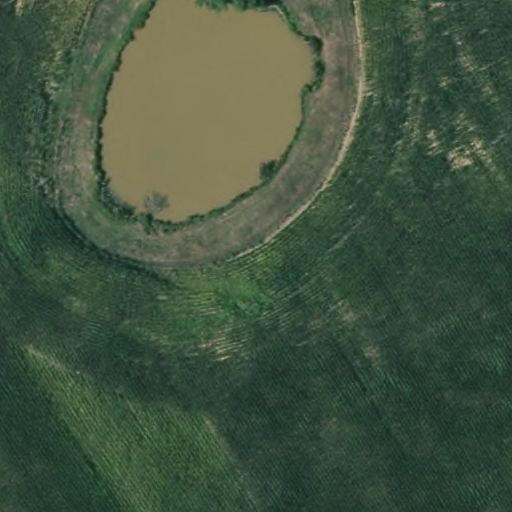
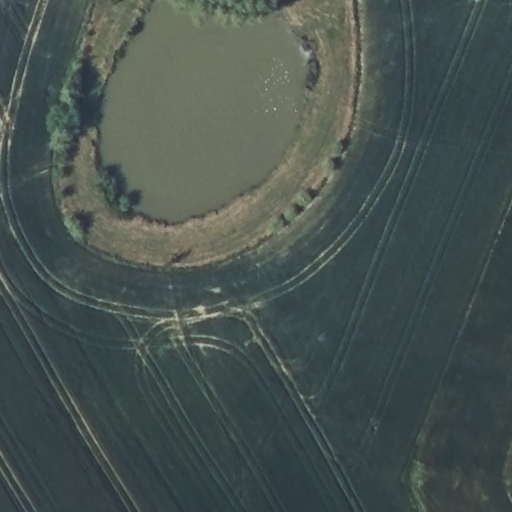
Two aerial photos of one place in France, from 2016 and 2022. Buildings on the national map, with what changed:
[]

